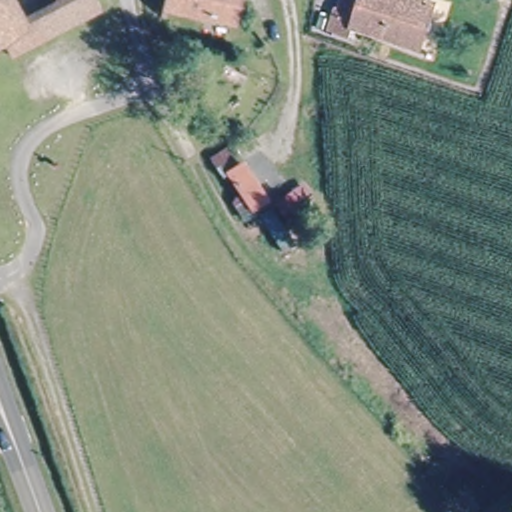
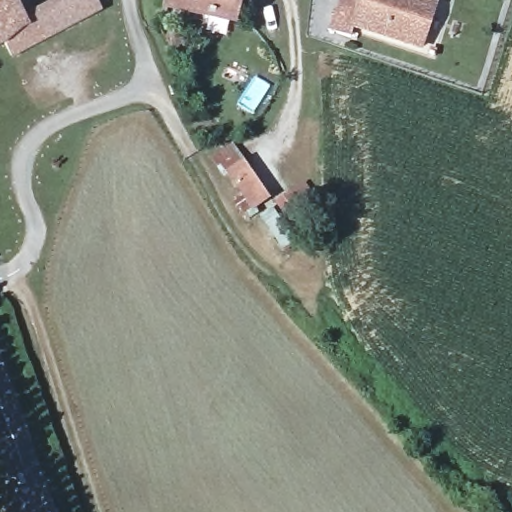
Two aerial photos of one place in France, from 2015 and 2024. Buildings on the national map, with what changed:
unchanged [(28,27),(0,42),(0,0),(13,0),(25,22),(28,27)]
unchanged [(28,27),(25,22),(64,2),(63,0),(103,0),(107,7),(20,50),(8,57),(0,42),(28,27)]
unchanged [(240,30),(166,20),(167,0),(243,0),(240,30)]
unchanged [(342,0),(435,0),(422,41),(355,20),(351,32),(328,24),(316,20),(324,0),(340,6),(342,0)]
unchanged [(239,162),(252,154),(273,187),(261,195),(239,162)]

